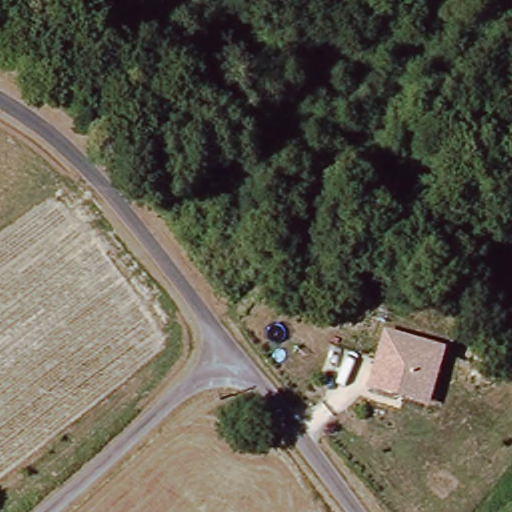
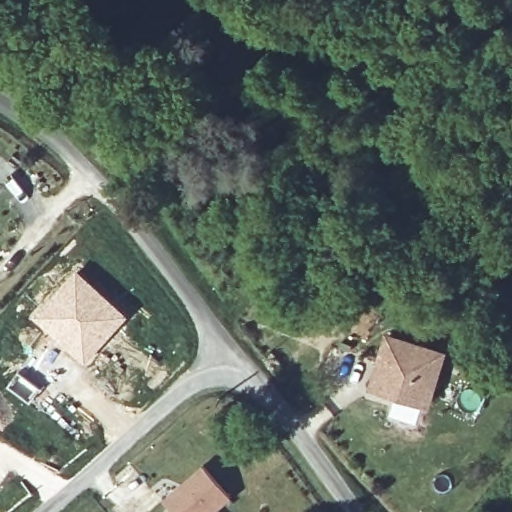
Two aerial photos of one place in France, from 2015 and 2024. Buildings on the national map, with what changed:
new [(75,267),(128,315),(84,368),(29,317),(75,267)]
unchanged [(448,347),(430,406),(367,388),(385,330),(448,347)]
new [(228,498),(212,512),(171,512),(161,500),(201,465),(228,498)]

